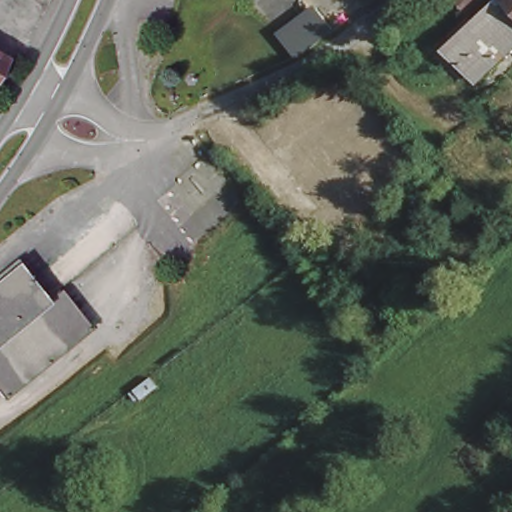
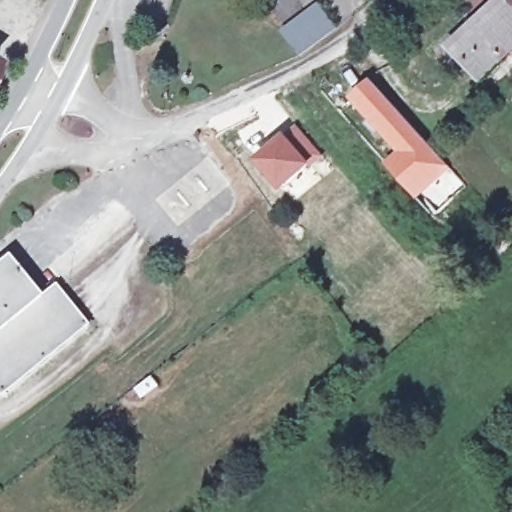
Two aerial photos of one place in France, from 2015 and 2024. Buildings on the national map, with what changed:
unchanged [(478,77),(453,49),(505,0),(512,0),(512,45),(478,77)]
unchanged [(337,27),(300,54),(285,33),(320,6),(337,27)]
new [(372,79),(450,168),(414,199),(384,165),(395,152),(350,100),(372,79)]
demolished [(340,119),(369,151),(323,194),(293,161),(340,119)]
new [(297,124),(323,155),(280,191),(255,161),(297,124)]
unchanged [(0,292),(0,265),(7,260),(20,276),(0,292)]
unchanged [(52,284),(82,322),(0,389),(0,292),(20,276),(36,296),(52,284)]

